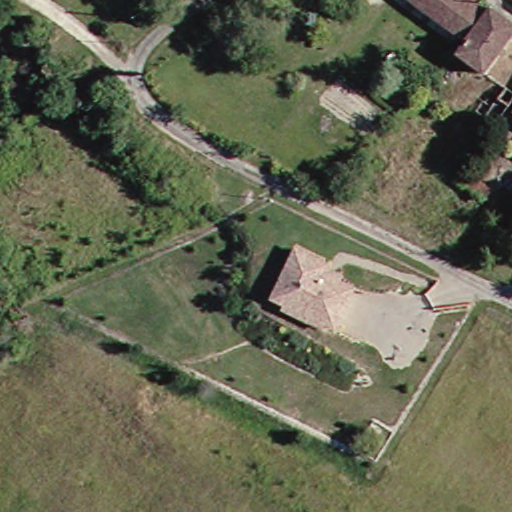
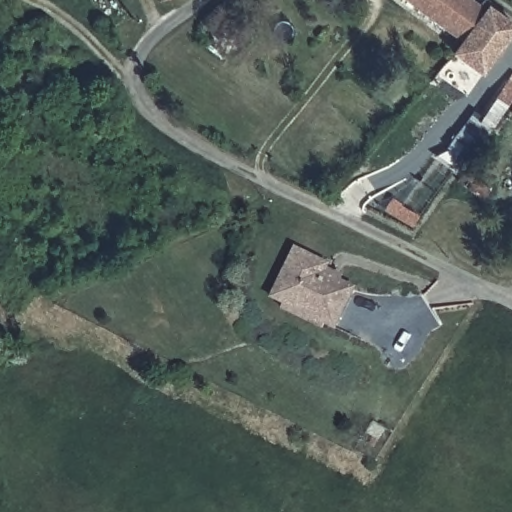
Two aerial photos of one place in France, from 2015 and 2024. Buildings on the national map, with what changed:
unchanged [(418,0),(479,0),(494,10),(471,37),(418,0)]
unchanged [(512,19),(512,41),(487,71),(460,52),(471,37),(494,10),(496,8),(512,19)]
unchanged [(504,106),(512,95),(512,112),(504,106)]
unchanged [(490,191),(484,200),(455,181),(463,170),(490,191)]
unchanged [(289,311),(291,306),(277,300),(301,251),(334,267),(332,271),(348,279),(346,283),(360,290),(341,330),(331,325),(329,330),(289,311)]

